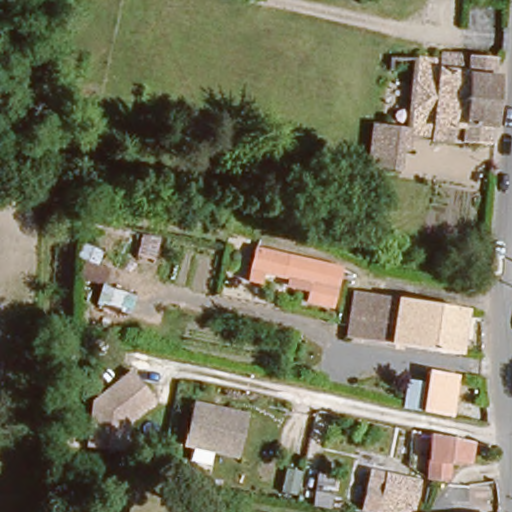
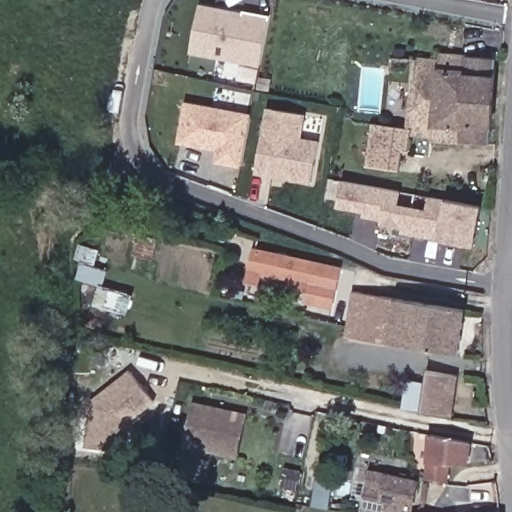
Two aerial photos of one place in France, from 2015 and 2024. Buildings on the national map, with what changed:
new [(268,19),(259,64),(191,51),(200,6),(268,19)]
unchanged [(440,133),(440,129),(421,128),(418,128),(417,135),(385,132),(386,120),(408,121),(414,63),(446,64),(446,54),(497,60),(491,135),(440,133)]
new [(252,114),(241,168),(215,164),(217,150),(179,144),(186,101),(252,114)]
new [(306,114),(303,139),(320,141),(313,184),(257,174),(267,108),(306,114)]
unchanged [(385,132),(417,135),(417,146),(412,145),(410,165),(376,163),(379,120),(386,120),(385,132)]
new [(473,243),(381,227),(381,217),(353,211),(354,186),(398,194),(397,204),(425,209),(427,197),(477,204),(473,243)]
new [(78,279),(79,275),(83,262),(75,259),(81,244),(101,252),(96,266),(109,270),(106,281),(104,287),(135,294),(129,314),(95,304),(101,285),(78,279)]
unchanged [(332,308),(307,303),(312,282),(250,269),(254,249),(340,268),(332,308)]
unchanged [(347,334),(347,329),(349,319),(350,313),(352,305),(355,286),(377,290),(400,295),(401,291),(425,298),(421,313),(431,314),(434,299),(467,303),(464,319),(458,353),(426,347),(347,334)]
unchanged [(131,414),(125,419),(121,448),(85,443),(90,407),(91,398),(131,369),(153,398),(131,414)]
unchanged [(417,415),(418,406),(425,372),(453,378),(445,419),(417,415)]
unchanged [(240,444),(238,457),(186,449),(189,434),(193,408),(245,416),(240,444)]
unchanged [(428,479),(431,432),(466,439),(466,459),(446,460),(447,483),(428,479)]
new [(318,474),(334,477),(328,508),(312,505),(318,474)]
unchanged [(364,481),(410,483),(412,512),(358,512),(364,481)]

